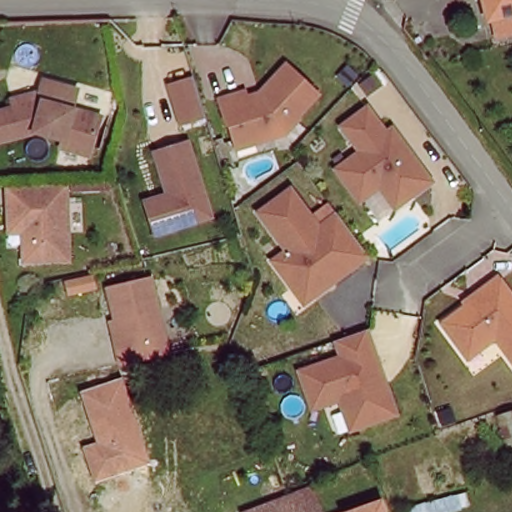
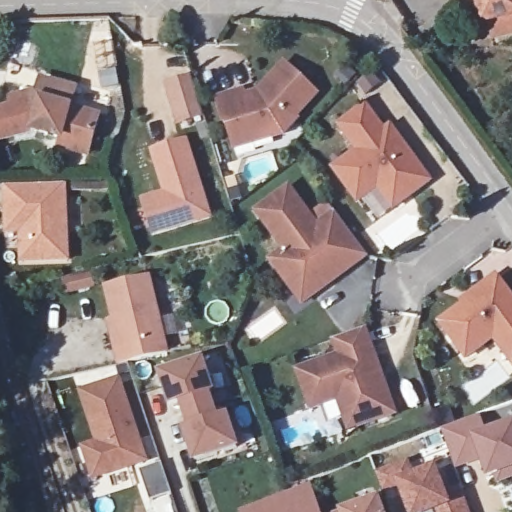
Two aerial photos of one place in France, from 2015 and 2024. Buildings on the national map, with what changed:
unchanged [(480,0),(512,0),(512,31),(497,35),(492,18),(485,20),(480,0)]
unchanged [(235,144),(231,126),(228,128),(221,101),(248,94),(250,99),(262,96),(290,66),(321,97),(299,120),(301,122),(287,137),(275,141),(238,151),(235,144)]
new [(191,79),(203,117),(179,124),(167,86),(191,79)]
unchanged [(100,123),(92,151),(32,133),(0,144),(0,115),(15,110),(13,103),(37,95),(42,83),(77,93),(72,112),(88,118),(100,123)]
unchanged [(364,111),(383,136),(389,132),(427,186),(399,206),(383,184),(355,205),(331,172),(356,155),(338,130),(364,111)]
unchanged [(147,202),(170,195),(156,146),(188,137),(211,216),(180,225),(157,232),(147,202)]
unchanged [(6,219),(5,189),(65,187),(67,262),(22,264),(20,234),(7,235),(6,219)]
unchanged [(287,286),(268,259),(282,249),(254,210),(287,187),(314,226),(333,213),(359,250),(364,256),(345,269),(309,295),(299,303),(287,286)]
unchanged [(131,361),(119,364),(115,349),(119,347),(104,287),(148,276),(167,352),(131,361)]
unchanged [(438,327),(495,282),(512,302),(512,363),(493,340),(479,351),(466,361),(457,351),(438,327)]
unchanged [(389,417),(352,428),(343,397),(306,408),(294,370),(336,357),(332,341),(363,331),(389,417)]
new [(202,360),(213,390),(208,392),(218,419),(227,416),(237,445),(196,459),(186,430),(191,428),(182,400),(171,404),(162,374),(202,360)]
unchanged [(121,378),(150,465),(94,482),(82,448),(95,443),(79,392),(121,378)]
new [(489,434),(512,425),(512,484),(500,488),(497,479),(489,483),(483,465),(459,473),(444,431),(484,419),(489,434)]
new [(413,462),(418,476),(439,468),(449,494),(463,488),(473,512),(408,512),(399,489),(385,495),(377,476),(413,462)]
unchanged [(321,512),(241,512),(276,500),(313,486),(321,512)]
unchanged [(381,498),(386,512),(344,512),(381,498)]

